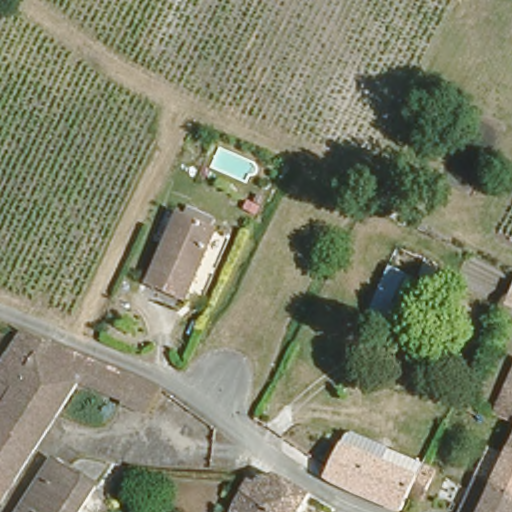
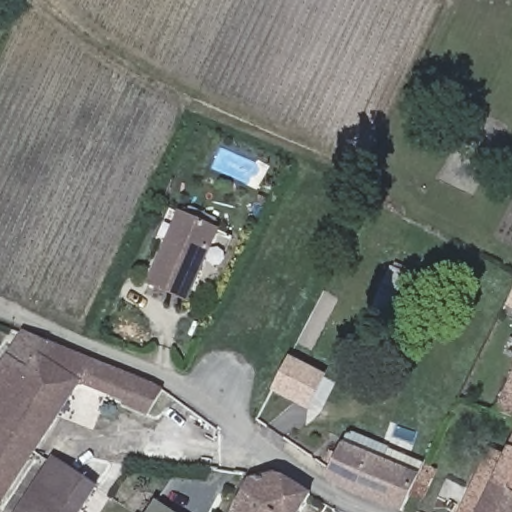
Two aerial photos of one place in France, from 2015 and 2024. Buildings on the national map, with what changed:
unchanged [(179,207),(184,210),(217,225),(184,295),(146,276),(166,235),(179,207)]
unchanged [(408,271),(400,287),(409,290),(393,328),(364,315),(388,263),(408,271)]
unchanged [(19,327),(47,340),(156,385),(155,388),(144,410),(120,397),(122,393),(79,375),(0,490),(0,357),(19,327)]
new [(271,391),(289,356),(327,376),(309,411),(271,391)]
unchanged [(512,423),(493,414),(495,408),(499,398),(512,368),(512,423)]
unchanged [(476,404),(465,432),(441,420),(455,396),(476,404)]
unchanged [(512,439),(512,490),(491,480),(512,439)]
unchanged [(414,475),(417,477),(422,467),(429,471),(430,468),(443,474),(442,478),(453,483),(445,501),(422,490),(417,500),(404,495),(397,510),(347,491),(318,475),(334,444),(404,480),(410,482),(413,476),(414,475)]
unchanged [(95,485),(77,512),(18,512),(55,456),(95,485)]
unchanged [(491,480),(512,490),(512,512),(459,512),(477,473),(491,480)]
unchanged [(279,476),(308,496),(298,512),(233,512),(239,496),(252,477),(271,475),(279,476)]
new [(174,512),(148,512),(156,500),(174,512)]

